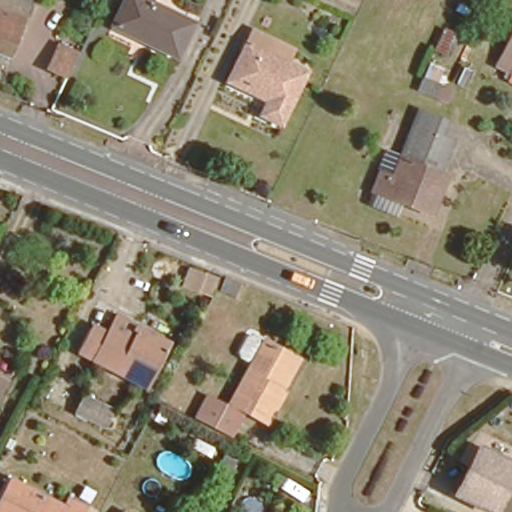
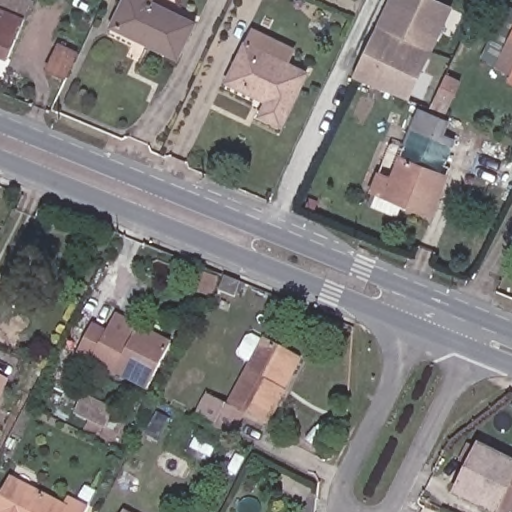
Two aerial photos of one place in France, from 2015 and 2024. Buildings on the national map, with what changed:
unchanged [(0,0),(29,0),(31,0),(7,56),(0,53),(0,0)]
unchanged [(172,55),(107,24),(119,0),(146,0),(190,21),(172,55)]
new [(407,97),(356,76),(392,0),(444,0),(452,3),(407,97)]
unchanged [(505,80),(508,72),(491,63),(512,22),(512,84),(505,80)]
unchanged [(282,124),(262,114),(268,99),(227,79),(245,41),(252,26),(293,47),(286,61),(307,72),(282,124)]
unchanged [(65,75),(47,66),(58,41),(76,50),(65,75)]
demolished [(446,85),(452,89),(447,100),(416,90),(427,60),(450,70),(446,85)]
unchanged [(423,211),(371,190),(380,167),(393,173),(418,107),(451,120),(446,136),(455,140),(442,170),(448,174),(443,186),(432,215),(423,211)]
unchanged [(211,296),(180,285),(192,265),(220,278),(222,275),(240,283),(231,298),(216,290),(211,296)]
unchanged [(166,345),(143,388),(72,352),(87,324),(102,332),(105,327),(127,338),(131,333),(127,330),(130,325),(166,345)]
unchanged [(268,420),(230,397),(263,336),(292,351),(299,356),(282,387),(285,388),(268,420)]
unchanged [(0,387),(0,374),(5,377),(0,387)]
unchanged [(104,429),(72,413),(82,392),(115,408),(104,429)]
unchanged [(207,392),(244,412),(234,434),(196,415),(207,392)]
unchanged [(456,494),(481,446),(512,462),(512,512),(494,512),(456,494)]
unchanged [(82,512),(0,512),(0,496),(10,478),(62,506),(67,498),(84,507),(82,512)]
unchanged [(124,511),(125,512),(123,512),(124,511)]

